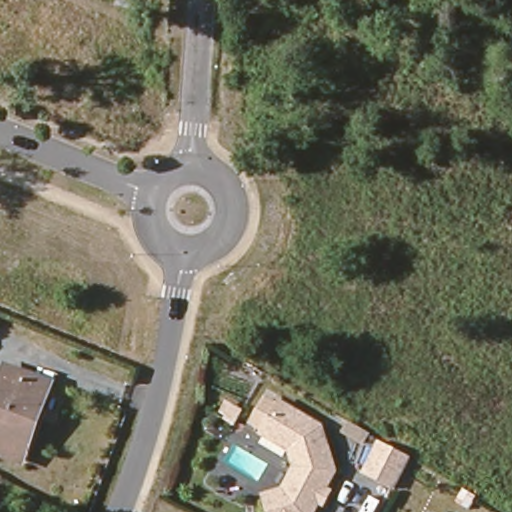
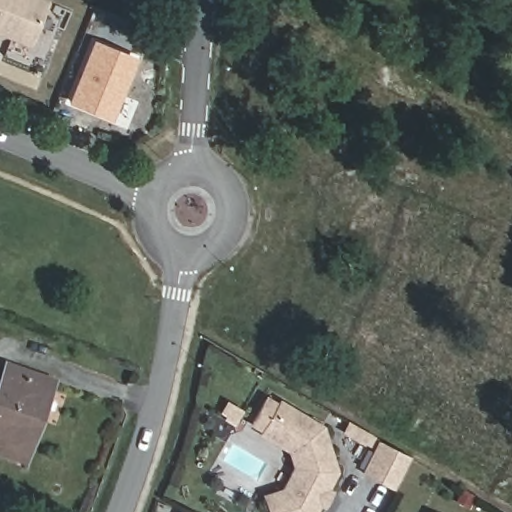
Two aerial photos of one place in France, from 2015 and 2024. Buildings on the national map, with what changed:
new [(0,0),(48,0),(29,46),(3,36),(0,38),(0,0)]
new [(110,122),(66,102),(92,39),(137,58),(110,122)]
new [(140,70),(136,68),(121,62),(131,39),(146,45),(150,47),(140,70)]
demolished [(0,91),(0,69),(16,75),(9,94),(0,91)]
unchanged [(0,456),(0,394),(8,370),(52,386),(24,465),(0,456)]
unchanged [(292,470),(287,454),(258,437),(260,432),(247,425),(261,402),(274,410),(277,405),(319,430),(323,443),(332,474),(323,492),(327,494),(327,495),(320,508),(316,505),(313,512),(265,512),(261,499),(281,493),(292,470)]
unchanged [(391,491),(360,475),(377,443),(408,460),(391,491)]
unchanged [(484,512),(488,506),(492,509),(491,512),(484,512)]

